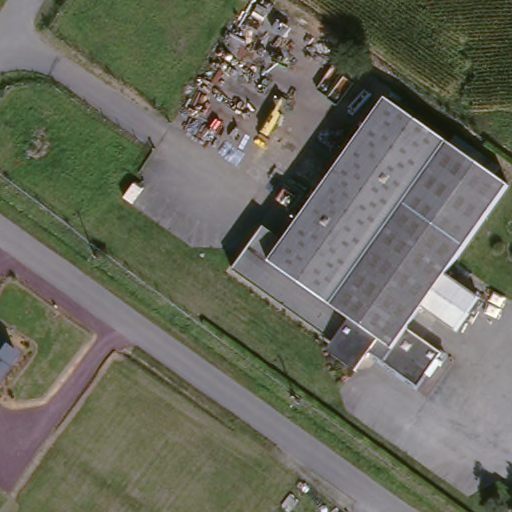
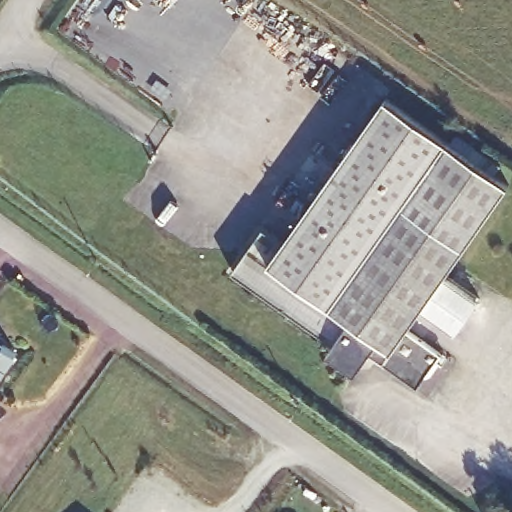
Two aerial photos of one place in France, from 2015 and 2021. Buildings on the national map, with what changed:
unchanged [(329,357),(336,349),(232,273),(264,229),(284,244),(386,104),(442,146),(449,139),(499,174),(492,184),(506,192),(445,278),(481,301),(457,337),(422,313),(407,333),(447,362),(439,373),(435,371),(430,379),(426,377),(414,396),(368,363),(363,369),(357,378),(329,357)]
unchanged [(0,377),(0,337),(20,352),(0,377)]

